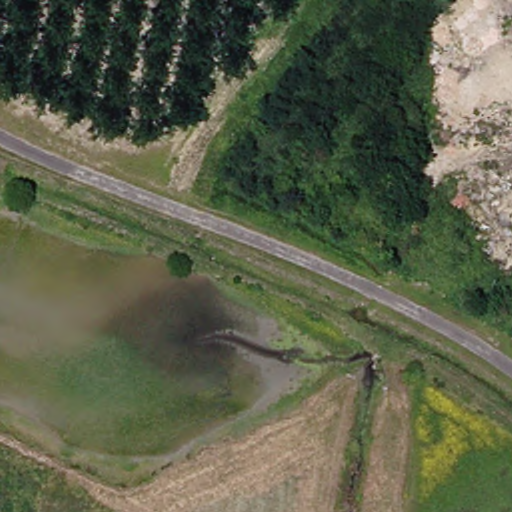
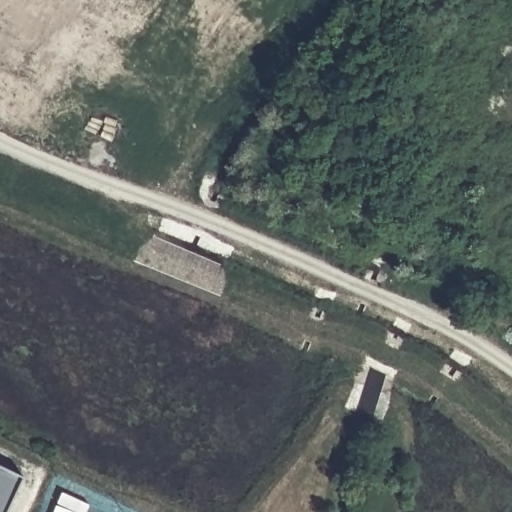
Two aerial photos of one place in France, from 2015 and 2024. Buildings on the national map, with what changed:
new [(8,512),(0,512),(0,467),(24,478),(8,512)]

